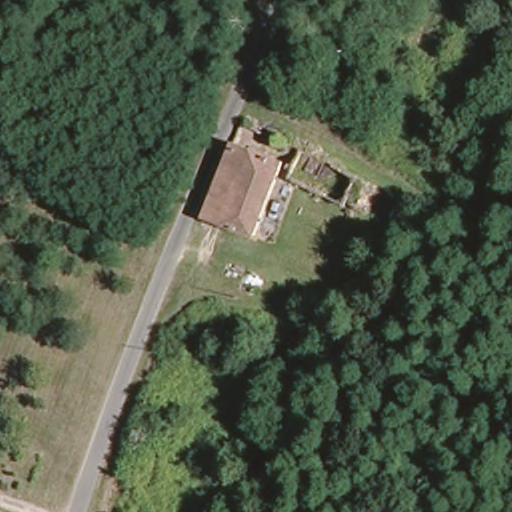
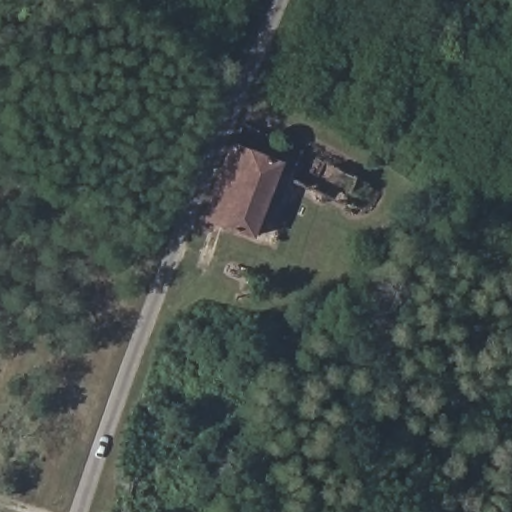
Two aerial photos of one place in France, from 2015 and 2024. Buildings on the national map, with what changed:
unchanged [(237,143),(282,163),(256,236),(210,219),(237,143)]

